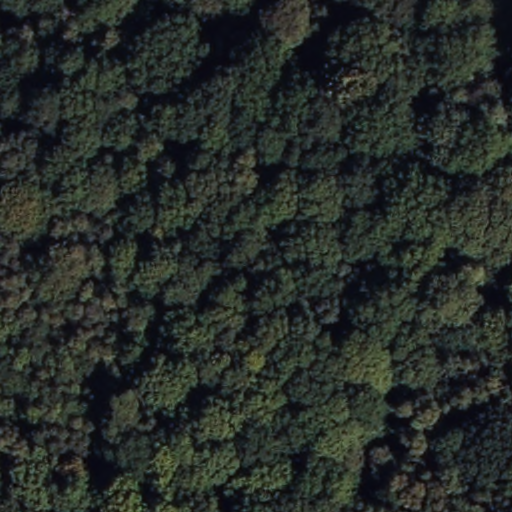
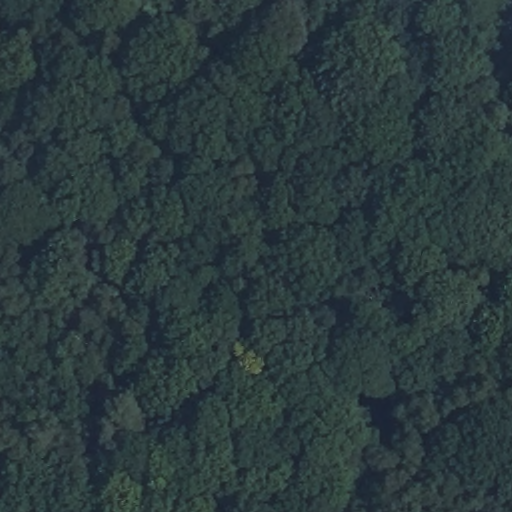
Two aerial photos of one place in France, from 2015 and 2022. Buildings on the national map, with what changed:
[]

